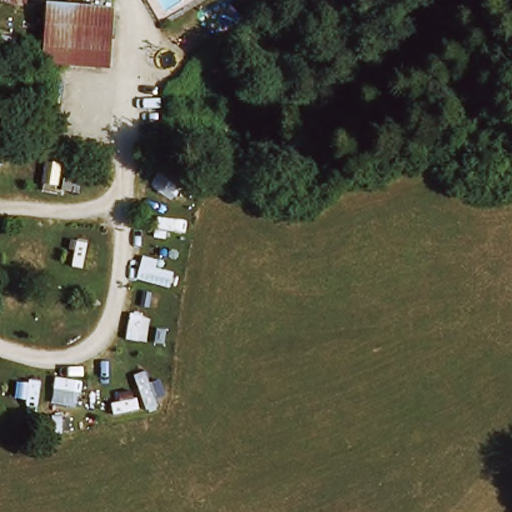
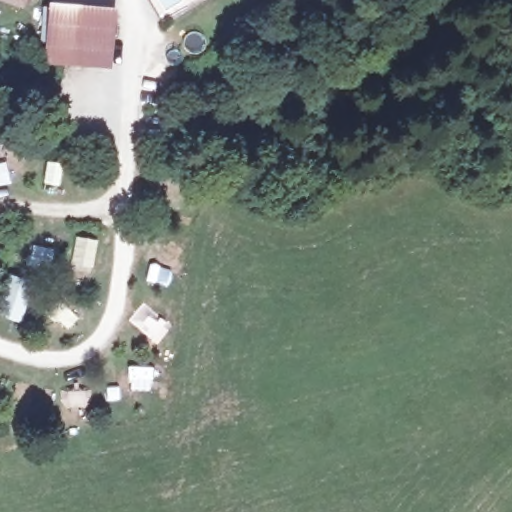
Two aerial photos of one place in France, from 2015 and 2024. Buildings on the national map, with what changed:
unchanged [(45,54),(50,8),(110,14),(107,50),(105,67),(45,61),(45,54)]

